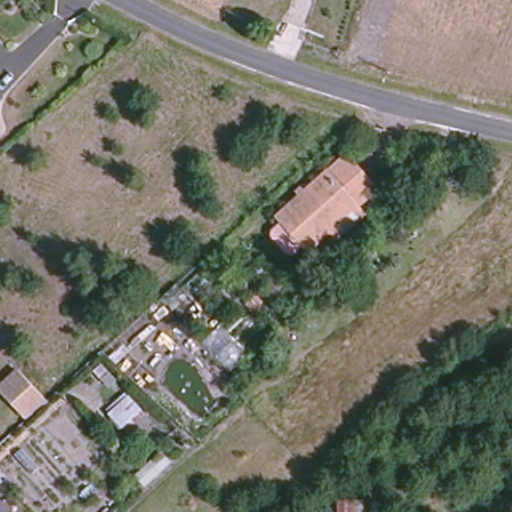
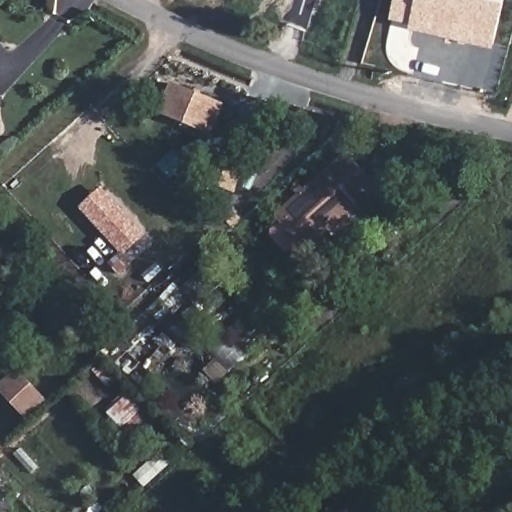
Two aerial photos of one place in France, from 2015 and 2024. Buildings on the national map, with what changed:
new [(505,2),(495,48),(411,28),(412,21),(405,19),(404,22),(391,19),(396,0),(495,0),(505,2)]
new [(175,83),(195,91),(193,96),(204,100),(206,95),(226,103),(215,132),(164,113),(175,83)]
unchanged [(265,233),(281,219),(276,213),(349,151),(383,188),(364,207),(369,215),(342,240),(334,233),(309,254),(305,249),(290,262),(265,233)]
new [(147,236),(124,255),(80,208),(103,187),(147,236)]
unchanged [(282,274),(265,288),(249,269),(264,255),(282,274)]
unchanged [(6,397),(0,389),(0,381),(16,368),(25,379),(44,400),(24,417),(6,397)]
unchanged [(150,417),(126,439),(102,412),(127,390),(150,417)]
unchanged [(339,512),(339,500),(366,501),(366,512),(339,512)]

